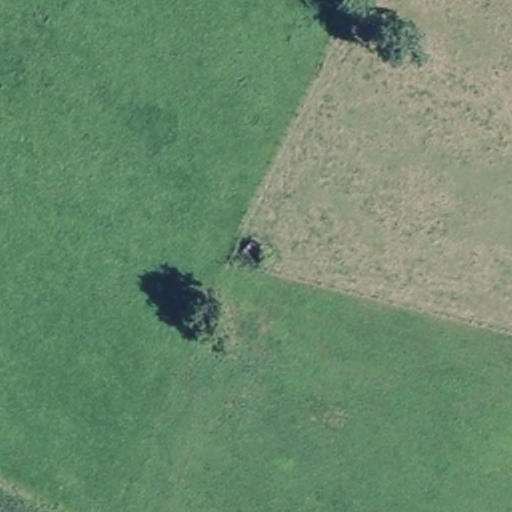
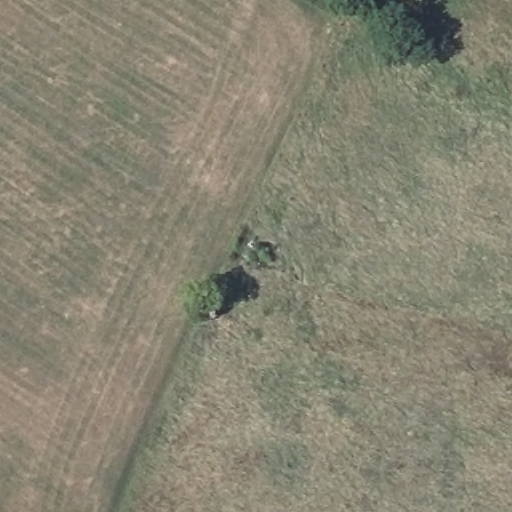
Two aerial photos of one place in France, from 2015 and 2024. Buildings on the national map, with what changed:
unchanged [(269,247),(259,265),(241,258),(248,239),(269,247)]

